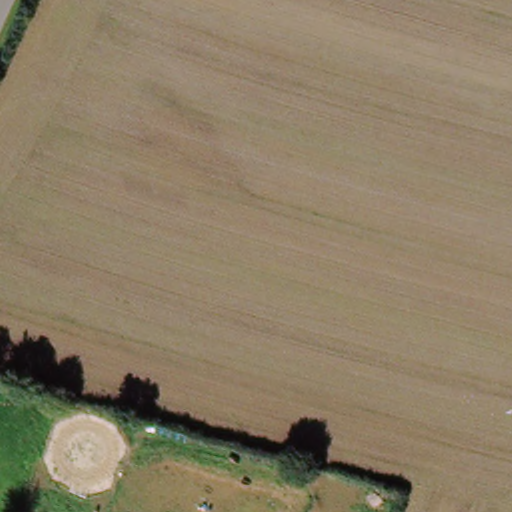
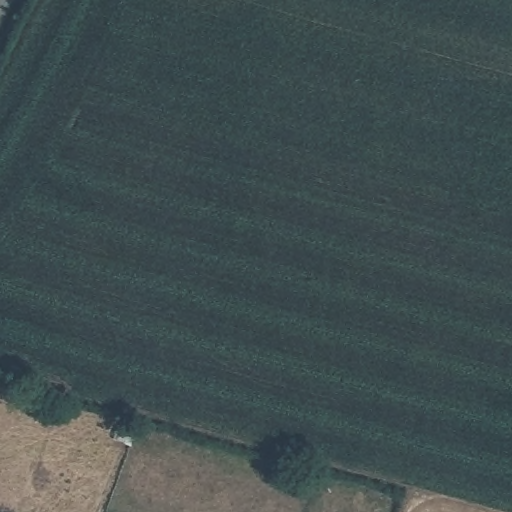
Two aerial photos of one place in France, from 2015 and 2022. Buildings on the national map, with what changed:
[]

